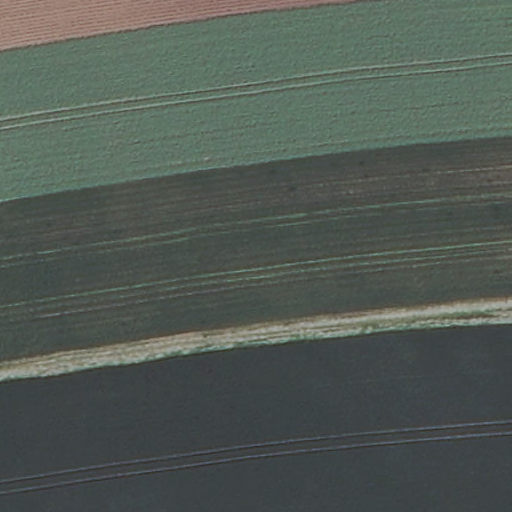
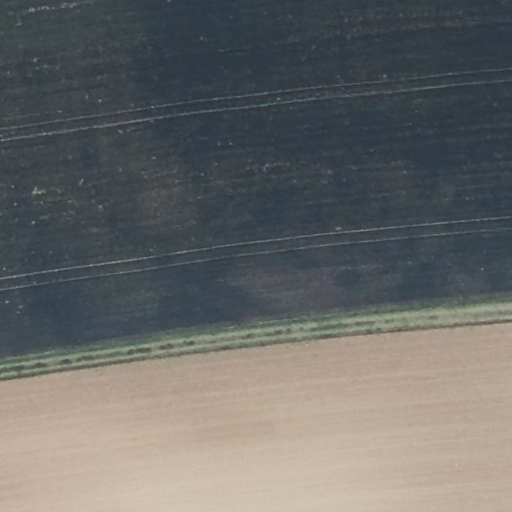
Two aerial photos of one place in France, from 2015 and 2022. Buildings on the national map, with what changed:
[]

